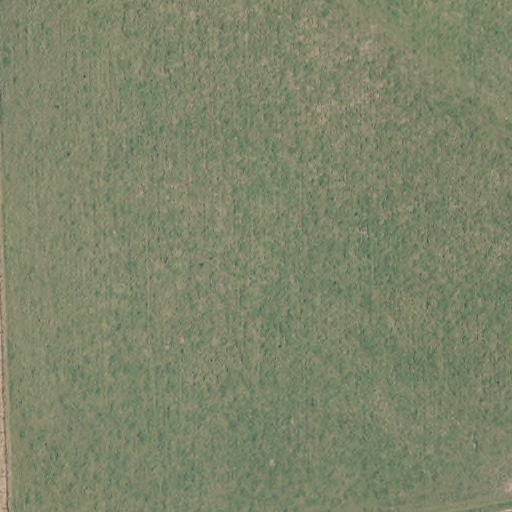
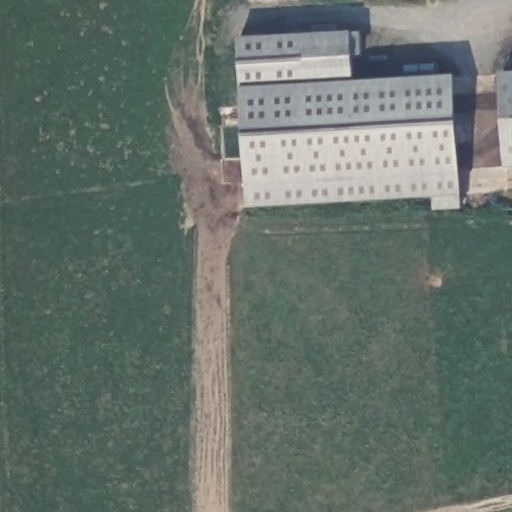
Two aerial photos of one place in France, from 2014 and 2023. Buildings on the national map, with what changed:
new [(350,30),(360,30),(361,56),(353,57),(355,79),(454,74),(460,174),(461,194),(462,208),(433,211),(431,197),(246,208),(239,87),(237,37),(350,30)]
new [(512,166),(505,166),(500,73),(512,72),(512,166)]

